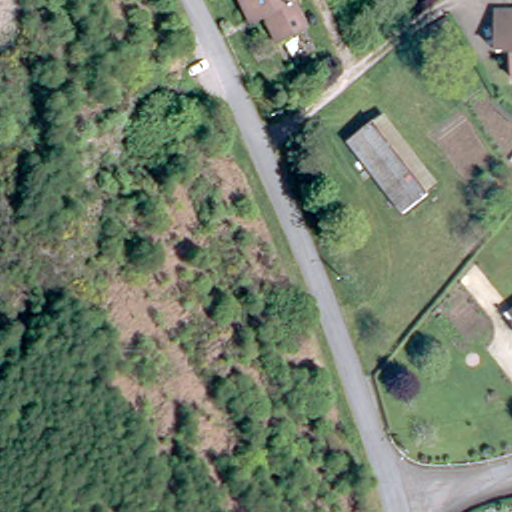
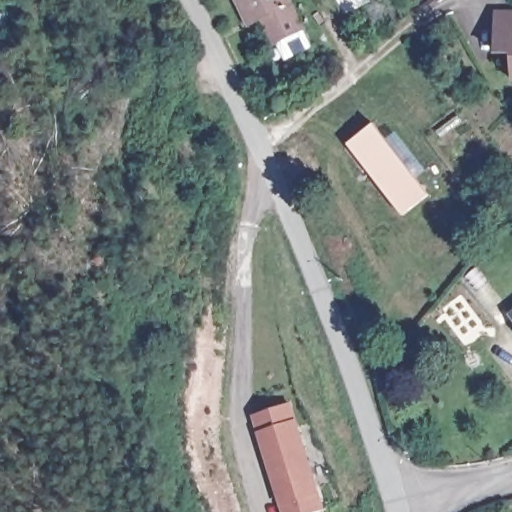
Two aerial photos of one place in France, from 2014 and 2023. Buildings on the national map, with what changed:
unchanged [(262,8),(249,15),(241,0),(295,0),(307,22),(278,37),(262,8)]
unchanged [(499,10),(512,9),(512,52),(500,52),(499,10)]
unchanged [(381,117),(434,189),(407,209),(355,136),(381,117)]
new [(297,421),(321,496),(325,508),(313,512),(282,512),(280,505),(258,428),(255,415),(292,402),(297,421)]

